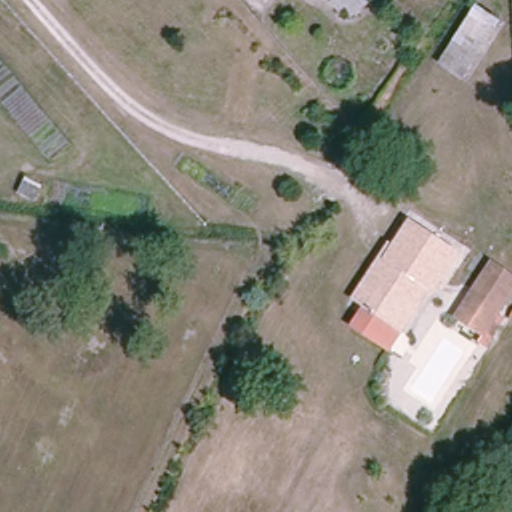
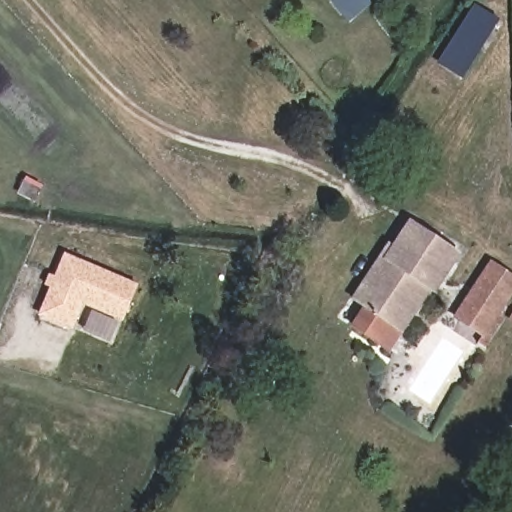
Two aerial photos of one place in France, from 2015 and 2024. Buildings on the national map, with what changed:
unchanged [(340,9),(331,0),(369,0),(372,4),(352,22),(340,9)]
unchanged [(437,61),(474,2),(500,18),(465,81),(437,61)]
unchanged [(42,186),(36,202),(19,192),(28,176),(42,186)]
unchanged [(437,294),(430,291),(403,332),(352,296),(386,241),(393,245),(409,220),(463,252),(437,294)]
new [(48,288),(52,277),(58,279),(67,254),(141,282),(129,316),(86,300),(77,326),(45,313),(53,290),(48,288)]
unchanged [(453,317),(490,260),(512,273),(512,297),(485,338),(453,317)]
unchanged [(512,314),(512,319),(509,317),(512,314)]

